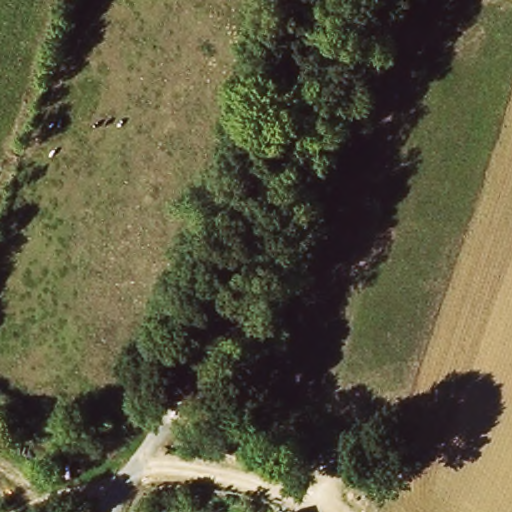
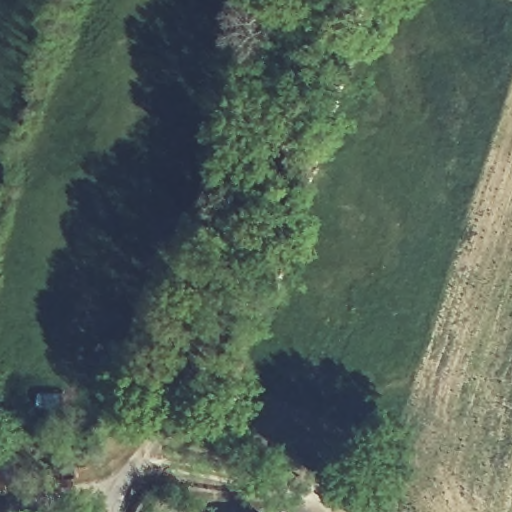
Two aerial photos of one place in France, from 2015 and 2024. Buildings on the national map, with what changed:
[]

